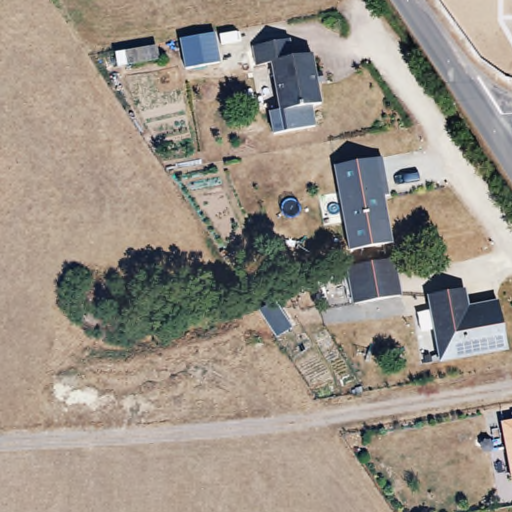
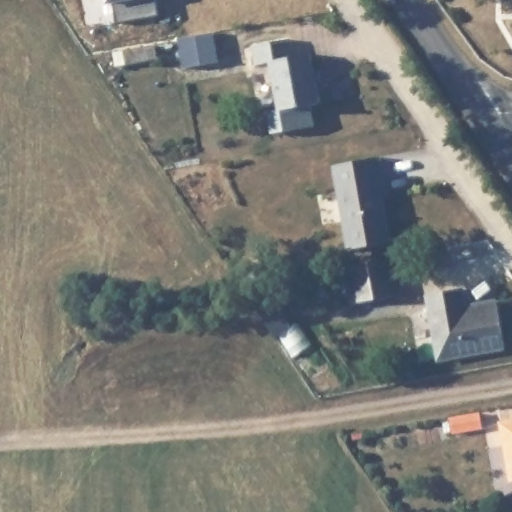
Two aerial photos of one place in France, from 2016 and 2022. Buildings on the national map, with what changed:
new [(106,5),(105,0),(155,0),(158,16),(116,24),(111,4),(106,5)]
unchanged [(222,61),(188,67),(183,37),(217,31),(222,61)]
unchanged [(268,132),(264,110),(274,108),(266,67),(251,69),(248,49),(285,42),(289,60),(308,57),(316,103),(306,104),(309,125),(268,132)]
unchanged [(153,45),(156,60),(116,67),(114,53),(153,45)]
unchanged [(382,155),(387,182),(382,182),(393,241),(350,249),(334,164),(382,155)]
unchanged [(388,265),(393,299),(349,308),(343,273),(388,265)]
unchanged [(462,317),(494,311),(503,357),(436,371),(429,331),(433,330),(428,304),(459,298),(462,317)]
unchanged [(503,420),(512,419),(512,469),(503,420)]

